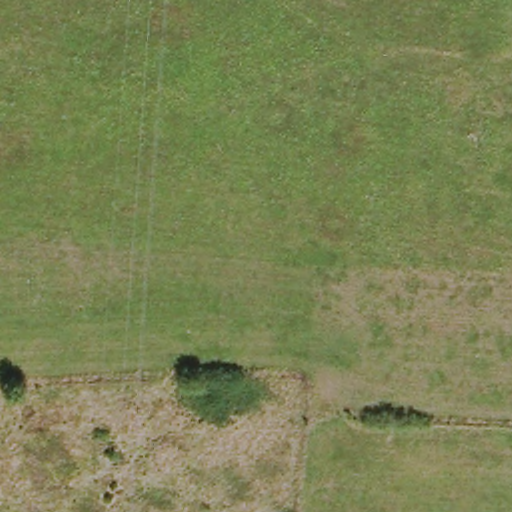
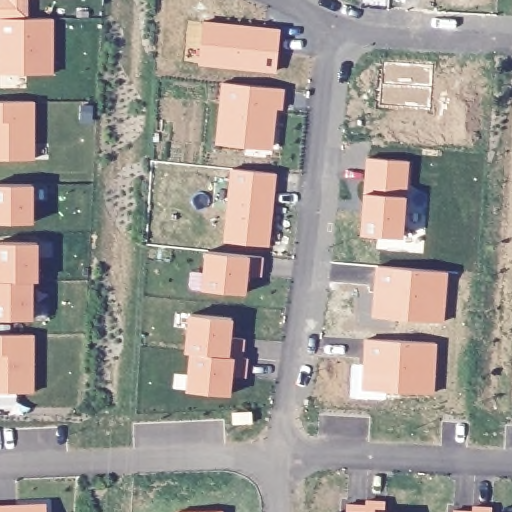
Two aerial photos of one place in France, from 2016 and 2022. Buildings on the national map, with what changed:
new [(28,15),(55,16),(54,71),(0,68),(0,46),(5,41),(6,30),(1,30),(2,12),(0,12),(0,0),(29,0),(28,15)]
new [(205,22),(281,30),(277,70),(200,63),(205,22)]
new [(267,148),(218,143),(224,82),(282,88),(281,108),(275,108),(274,128),(272,148),(267,148)]
new [(34,159),(0,159),(0,101),(34,101),(34,159)]
new [(369,157),(408,160),(402,236),(363,233),(369,157)]
new [(275,172),(268,245),(225,241),(232,168),(275,172)]
new [(33,222),(0,221),(0,184),(33,184),(33,222)]
new [(32,318),(0,318),(0,241),(38,241),(37,279),(32,279),(32,318)]
new [(207,251),(248,255),(262,256),(260,275),(246,273),(245,292),(204,289),(207,251)]
new [(445,271),(442,323),(377,317),(380,286),(376,285),(377,266),(445,271)]
new [(229,392),(189,388),(192,352),(187,352),(190,314),(232,319),(230,339),(244,340),(242,357),(247,359),(245,375),(230,376),(229,392)]
new [(34,392),(0,392),(0,333),(34,333),(34,392)]
new [(435,342),(432,393),(367,389),(369,358),(365,358),(366,339),(435,342)]
new [(366,506),(367,501),(385,502),(385,512),(347,512),(347,505),(366,506)]
new [(46,512),(0,512),(0,506),(46,504),(46,512)]
new [(492,508),(492,512),(472,512),(473,507),(492,508)]
new [(221,512),(177,512),(221,510),(221,512)]
new [(472,512),(453,512),(454,511),(472,512)]

